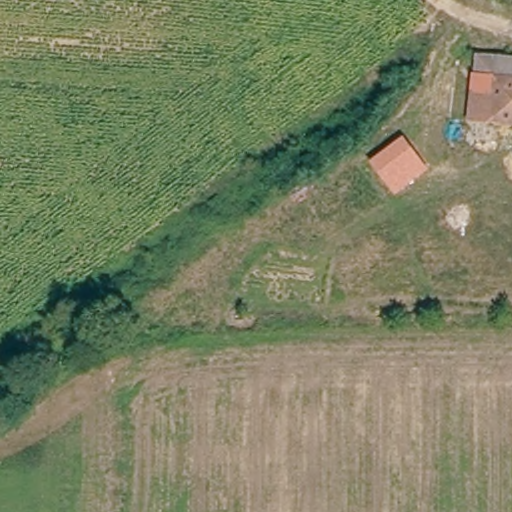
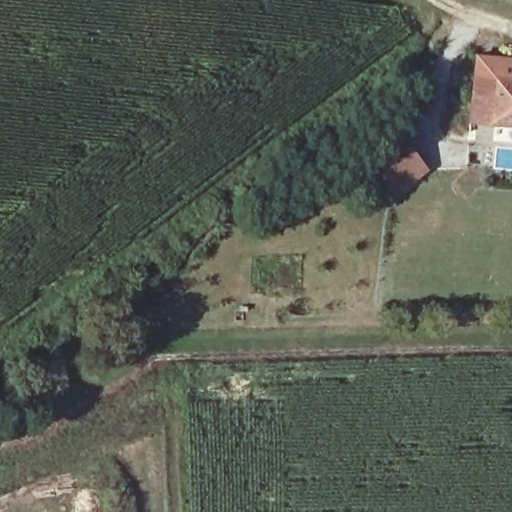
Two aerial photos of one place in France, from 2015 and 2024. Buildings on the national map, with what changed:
unchanged [(464,118),(466,87),(478,88),(480,52),(512,55),(512,123),(464,118)]
unchanged [(394,195),(370,162),(402,137),(427,169),(394,195)]

